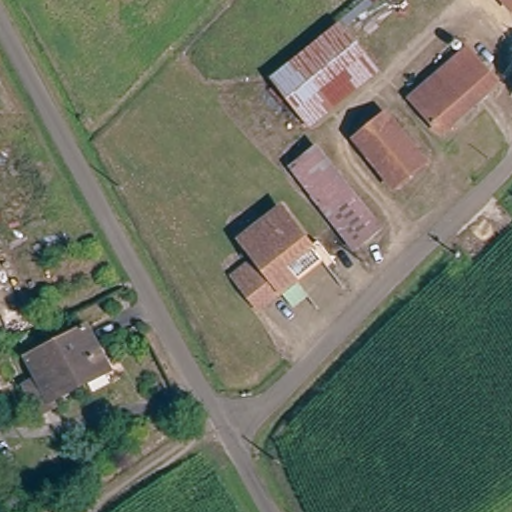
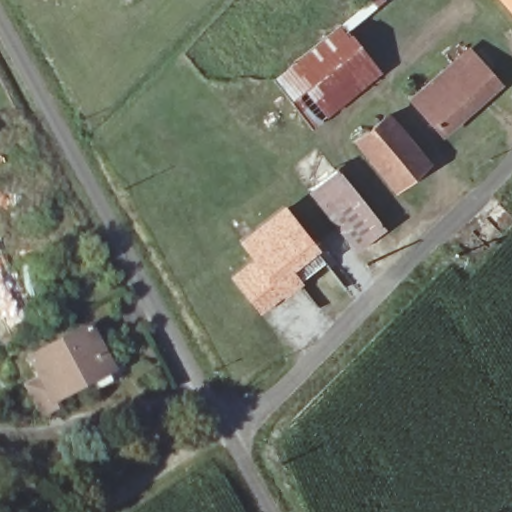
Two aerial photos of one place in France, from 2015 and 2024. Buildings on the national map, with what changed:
unchanged [(502,0),(512,0),(512,11),(502,0)]
unchanged [(379,73),(310,128),(273,81),(342,26),(379,73)]
unchanged [(497,85),(439,134),(410,100),(468,51),(497,85)]
unchanged [(425,165),(392,190),(354,140),(386,115),(425,165)]
unchanged [(380,228),(365,240),(354,249),(291,169),(302,160),(317,148),(380,228)]
unchanged [(312,251),(249,299),(225,265),(244,249),(232,231),(272,199),(312,251)]
unchanged [(39,413),(24,384),(38,377),(27,355),(87,323),(111,367),(50,399),(53,405),(39,413)]

